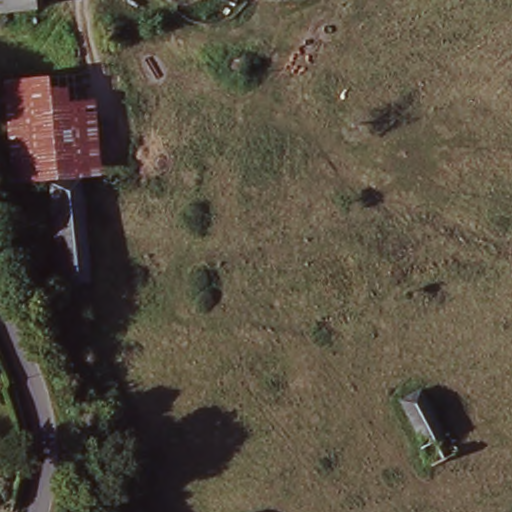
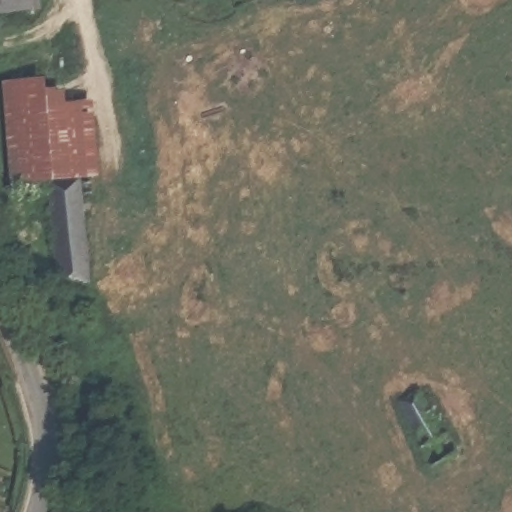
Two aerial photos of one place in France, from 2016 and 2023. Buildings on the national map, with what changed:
unchanged [(42,7),(0,12),(0,0),(41,0),(42,7)]
unchanged [(11,182),(5,84),(61,81),(65,101),(99,100),(99,177),(11,182)]
unchanged [(75,191),(90,291),(60,296),(45,195),(75,191)]
unchanged [(420,400),(443,442),(447,440),(459,462),(436,474),(427,455),(428,449),(404,407),(420,400)]

